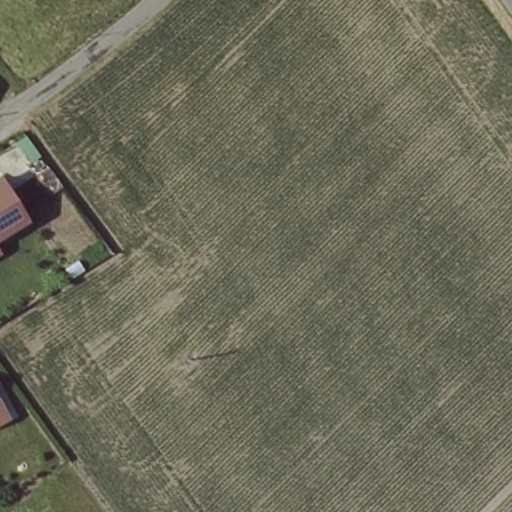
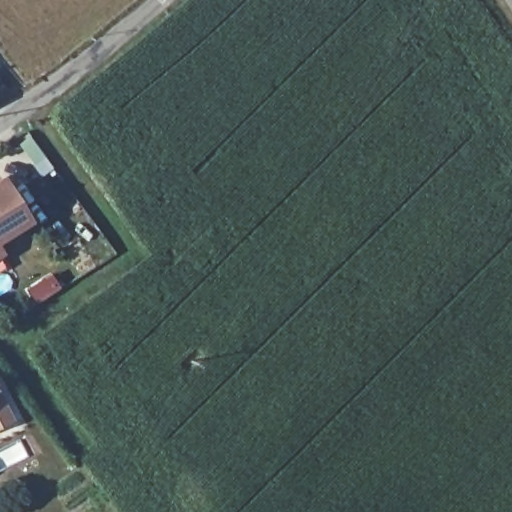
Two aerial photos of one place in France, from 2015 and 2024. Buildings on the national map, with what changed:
unchanged [(3,182),(28,224),(0,240),(0,184),(3,182)]
unchanged [(9,424),(0,428),(0,405),(9,424)]

